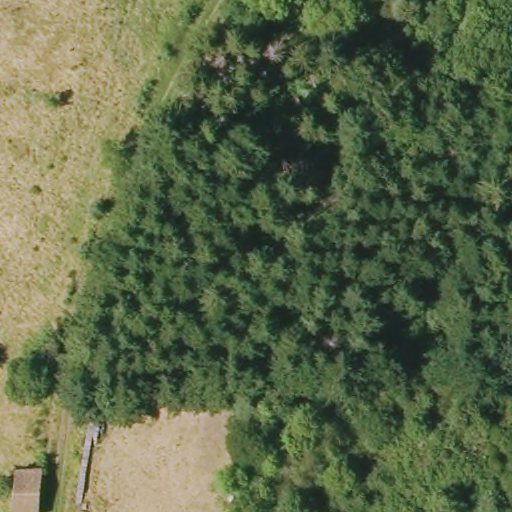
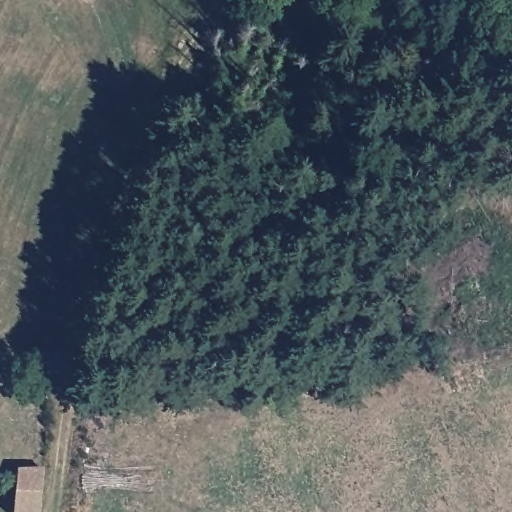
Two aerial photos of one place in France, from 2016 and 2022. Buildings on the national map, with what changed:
unchanged [(7,492),(17,493),(20,474),(44,474),(40,512),(15,512),(15,509),(6,509),(7,492)]

